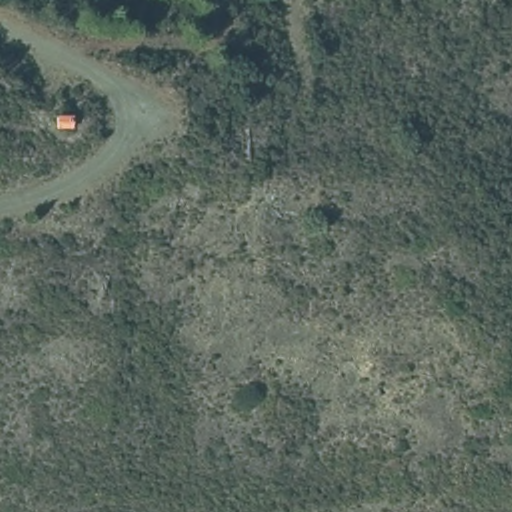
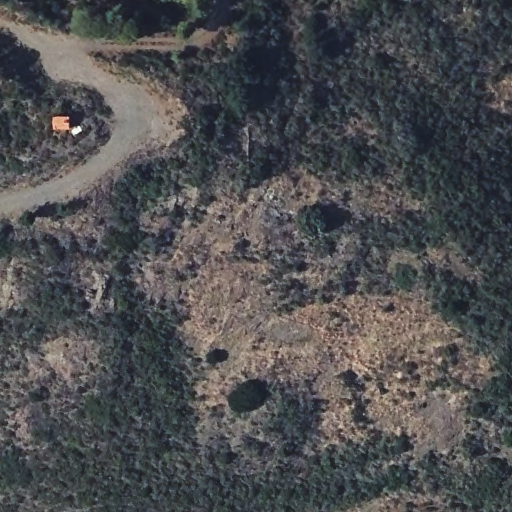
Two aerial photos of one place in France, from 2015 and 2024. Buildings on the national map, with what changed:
unchanged [(58,115),(75,115),(76,127),(58,128),(58,115)]

